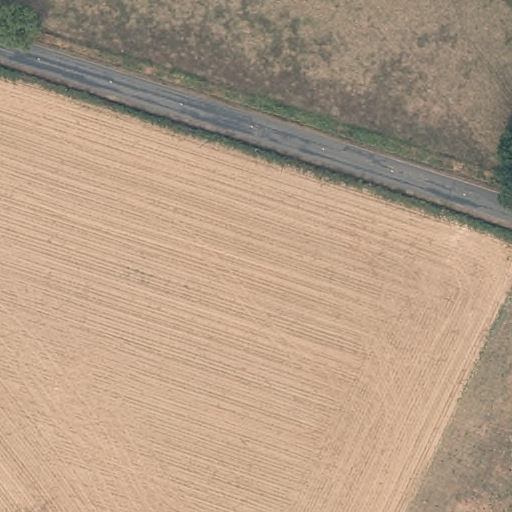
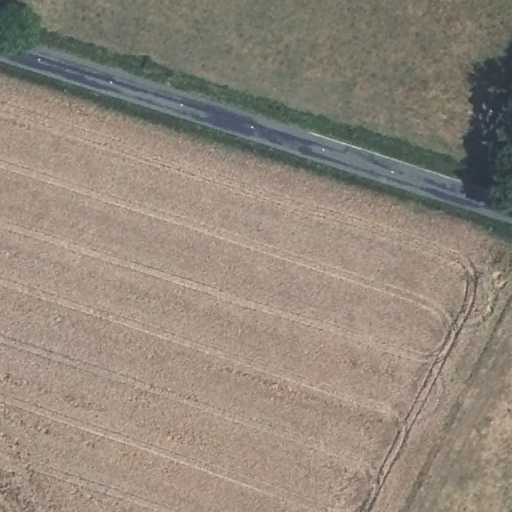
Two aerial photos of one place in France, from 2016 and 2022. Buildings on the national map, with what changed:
[]

